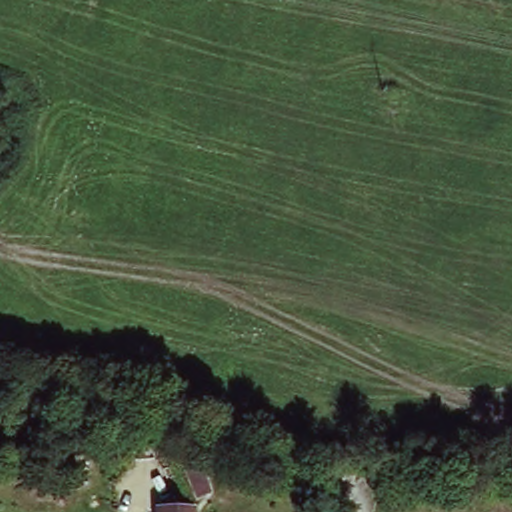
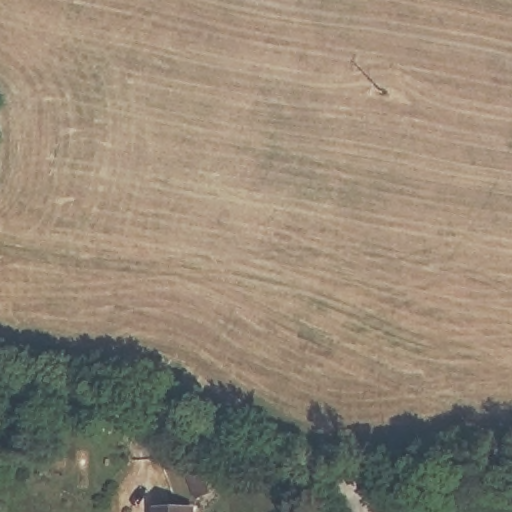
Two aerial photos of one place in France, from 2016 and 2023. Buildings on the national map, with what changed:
unchanged [(161,511),(171,512),(157,512),(157,511),(161,511)]

